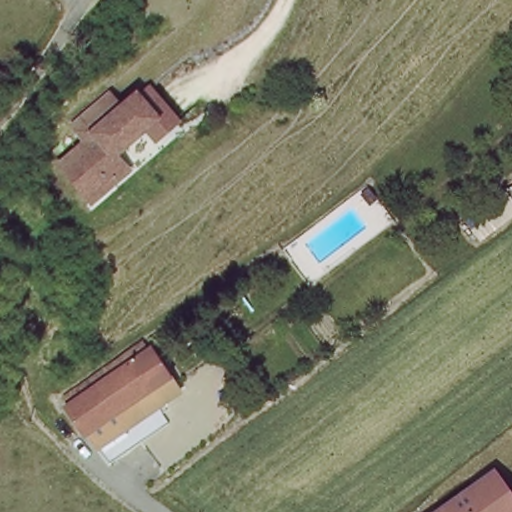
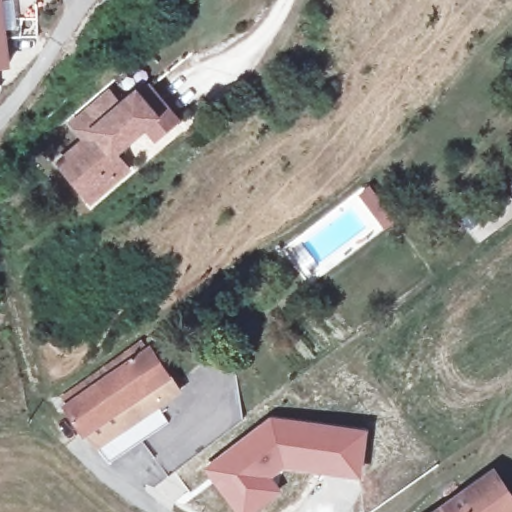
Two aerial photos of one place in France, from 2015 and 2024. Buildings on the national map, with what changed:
new [(8,30),(12,67),(0,69),(0,0),(17,0),(18,29),(8,30)]
unchanged [(178,120),(154,143),(144,132),(118,157),(128,172),(89,204),(56,164),(77,143),(69,128),(110,89),(124,100),(149,88),(178,120)]
unchanged [(140,342),(143,339),(162,370),(175,388),(125,422),(116,407),(83,428),(78,424),(65,402),(86,387),(115,369),(112,363),(140,342)]
new [(285,467),(272,478),(281,490),(253,512),(237,512),(204,468),(272,416),(366,430),(360,476),(285,467)]
unchanged [(512,497),(512,512),(434,512),(492,468),(512,497)]

